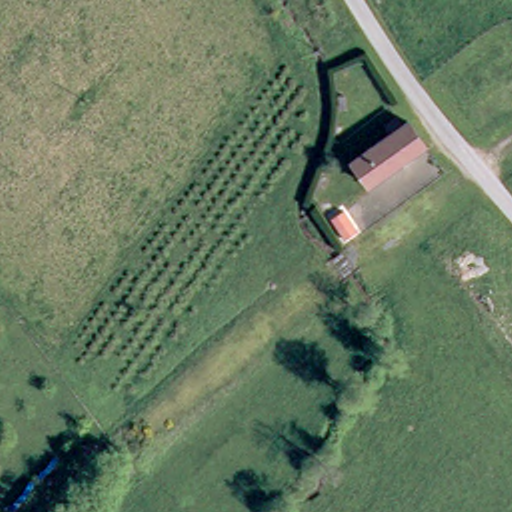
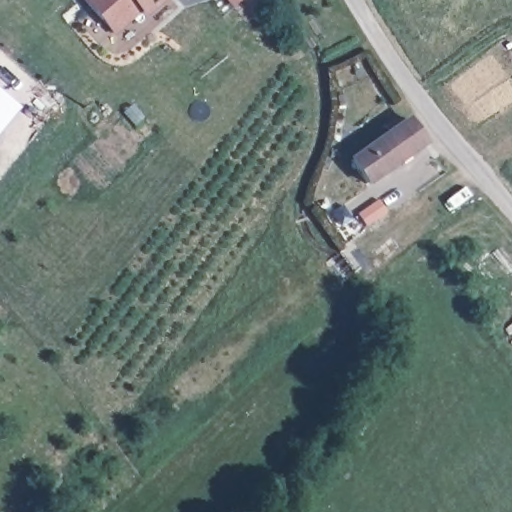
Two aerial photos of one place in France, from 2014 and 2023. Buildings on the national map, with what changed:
new [(145,20),(140,14),(114,37),(82,0),(167,0),(145,20)]
new [(0,131),(0,94),(18,109),(0,131)]
unchanged [(362,160),(399,136),(395,127),(405,120),(410,127),(419,122),(432,149),(375,184),(362,160)]

